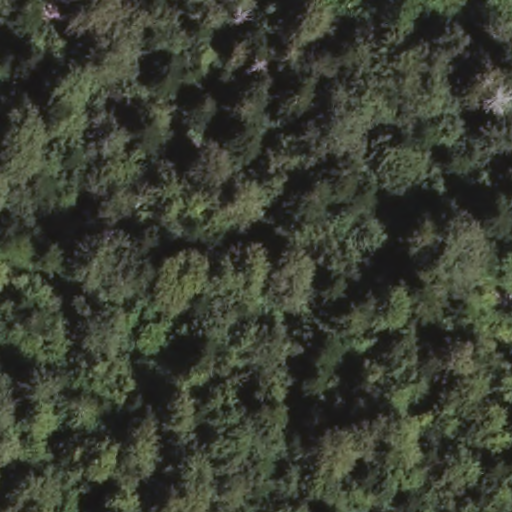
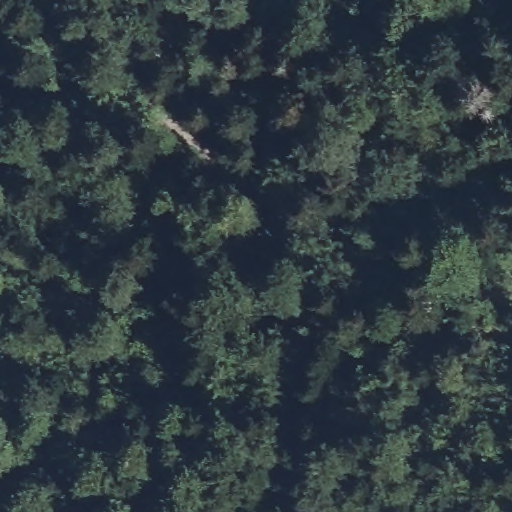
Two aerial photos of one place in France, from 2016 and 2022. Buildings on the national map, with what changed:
[]

